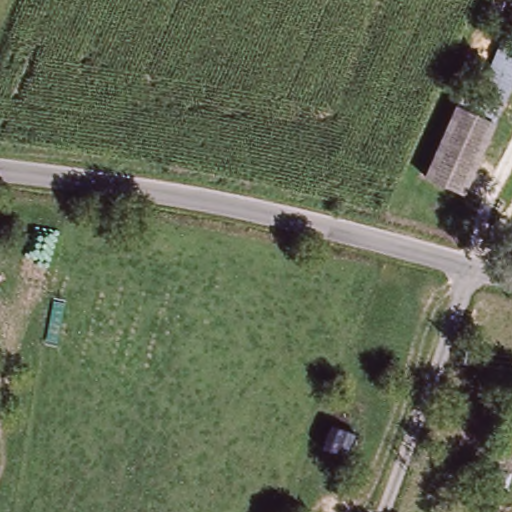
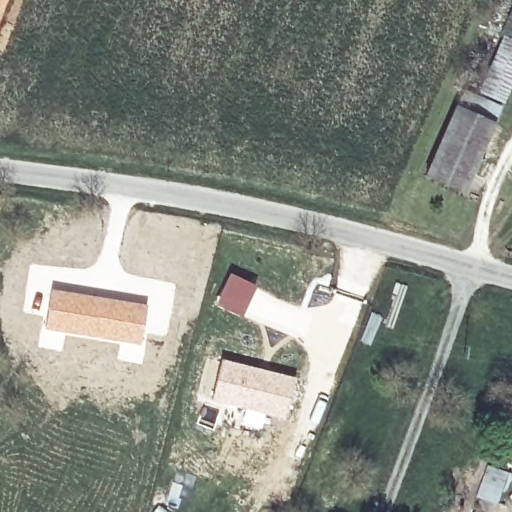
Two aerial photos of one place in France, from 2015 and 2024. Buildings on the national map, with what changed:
new [(0,15),(0,0),(5,0),(0,15)]
unchanged [(430,181),(459,114),(494,129),(465,196),(430,181)]
new [(230,272),(256,285),(241,316),(215,302),(230,272)]
new [(52,287),(147,303),(142,347),(43,330),(52,287)]
new [(218,357),(297,377),(285,418),(266,413),(261,430),(239,423),(244,407),(209,396),(218,357)]
new [(176,468),(197,476),(192,490),(186,487),(179,503),(167,500),(176,468)]

